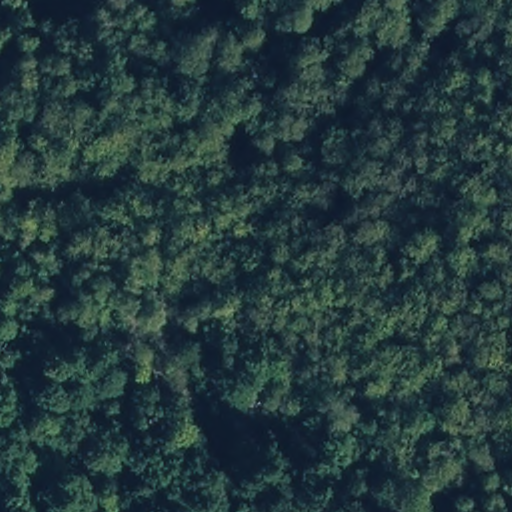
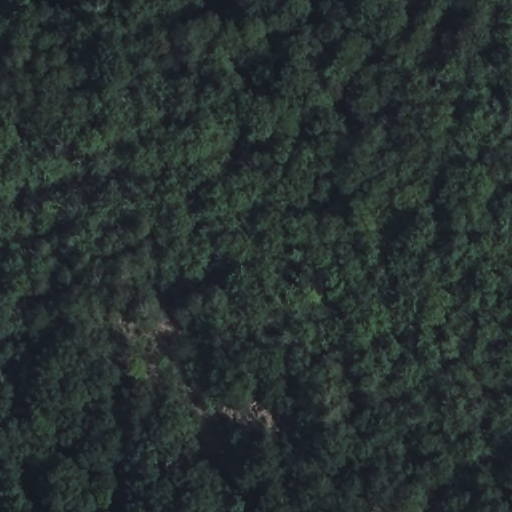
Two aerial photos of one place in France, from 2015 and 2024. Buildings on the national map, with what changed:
[]

